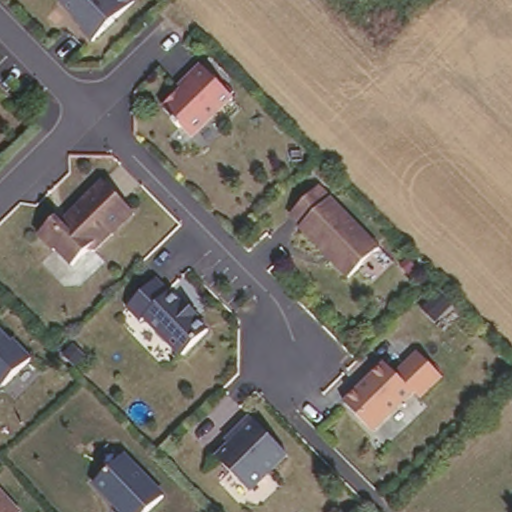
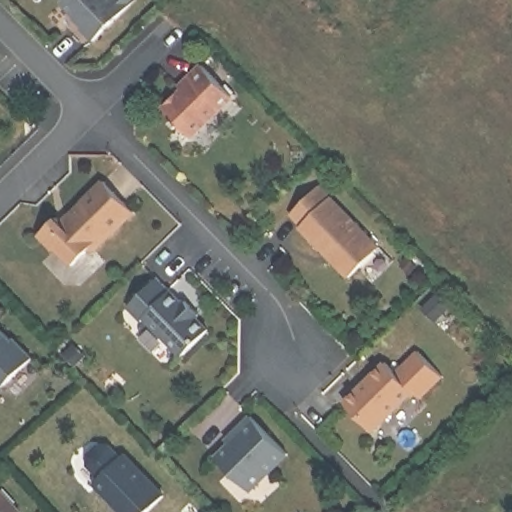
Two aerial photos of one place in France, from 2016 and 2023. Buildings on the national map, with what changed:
unchanged [(133,0),(134,1),(92,42),(80,30),(84,27),(60,4),(65,0),(133,0)]
unchanged [(194,80),(190,76),(202,64),(234,97),(192,137),(181,126),(180,128),(174,122),(176,120),(165,108),(194,80)]
unchanged [(300,222),(302,220),(291,208),(320,180),(380,242),(350,272),(330,252),(325,247),(300,222)]
unchanged [(56,218),(63,225),(70,218),(69,216),(104,181),(135,212),(95,251),(87,251),(72,267),(55,250),(54,251),(38,235),(56,218)]
unchanged [(145,313),(140,317),(126,303),(157,273),(182,299),(186,296),(200,310),(197,313),(209,326),(182,352),(145,313)]
unchanged [(30,354),(0,386),(0,328),(30,354)]
unchanged [(385,357),(396,368),(418,346),(443,371),(420,392),(414,385),(373,426),(345,397),(385,357)]
unchanged [(255,491),(221,458),(246,433),(242,430),(255,417),(293,454),(255,491)]
unchanged [(165,496),(152,512),(125,512),(96,485),(126,458),(165,496)]
unchanged [(23,512),(0,512),(0,484),(23,512)]

